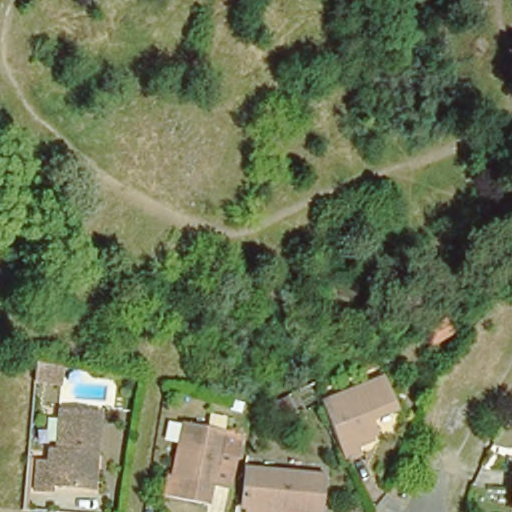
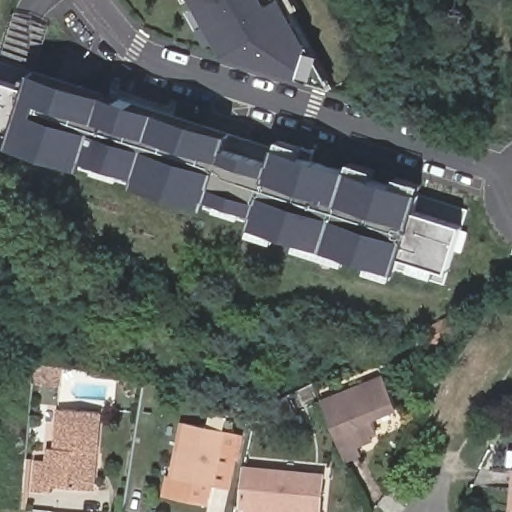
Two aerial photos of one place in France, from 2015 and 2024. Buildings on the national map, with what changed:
new [(308,51),(313,49),(332,90),(210,47),(190,10),(195,9),(191,0),(295,0),(299,8),(289,14),(308,51)]
new [(242,217),(217,209),(219,203),(209,199),(206,208),(170,197),(134,185),(136,177),(123,172),(121,179),(96,170),(98,164),(84,160),(81,169),(45,158),(9,146),(13,134),(8,133),(4,142),(0,141),(0,61),(32,71),(32,70),(69,82),(105,93),(131,101),(158,109),(194,120),(230,132),(229,134),(274,148),(275,146),(277,146),(279,139),(305,146),(303,154),(312,158),(349,169),(351,161),(376,169),(374,177),(386,180),(395,184),(397,176),(422,184),(420,191),(422,192),(421,195),(468,210),(464,224),(448,272),(444,284),(398,270),(397,271),(395,270),(393,279),(367,271),(369,263),(361,260),(348,256),(346,264),(322,257),(297,249),(299,240),(288,237),(277,234),(274,242),(249,234),(252,226),(250,225),(254,213),(244,210),(242,217)]
unchanged [(444,321),(451,333),(434,342),(428,330),(444,321)]
unchanged [(55,364),(54,381),(32,379),(34,361),(55,364)]
unchanged [(374,432),(374,434),(343,447),(324,398),(388,374),(399,404),(374,414),(379,425),(380,429),(374,432)]
unchanged [(285,400),(292,412),(277,420),(270,409),(285,400)]
unchanged [(239,404),(236,414),(224,412),(228,401),(239,404)]
unchanged [(50,489),(50,495),(34,494),(36,459),(44,459),(45,448),(48,448),(55,448),(59,409),(61,410),(99,414),(95,458),(92,493),(87,492),(50,489)]
unchanged [(190,419),(243,433),(237,459),(223,457),(210,504),(167,494),(172,476),(177,477),(178,474),(190,419)]
unchanged [(244,510),(245,503),(240,503),(245,464),(324,472),(321,512),(284,508),(284,512),(262,512),(244,510)]
unchanged [(511,508),(512,497),(512,508),(511,508)]

